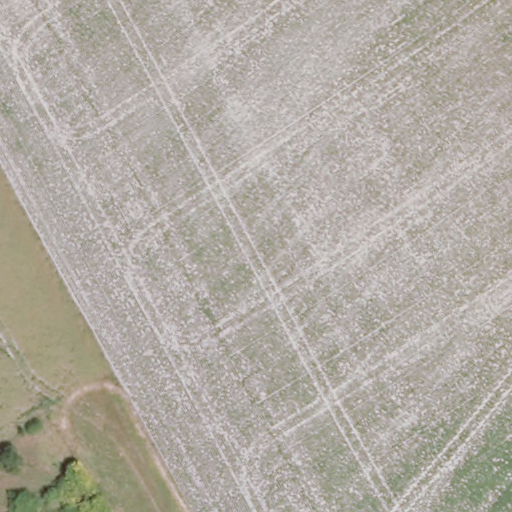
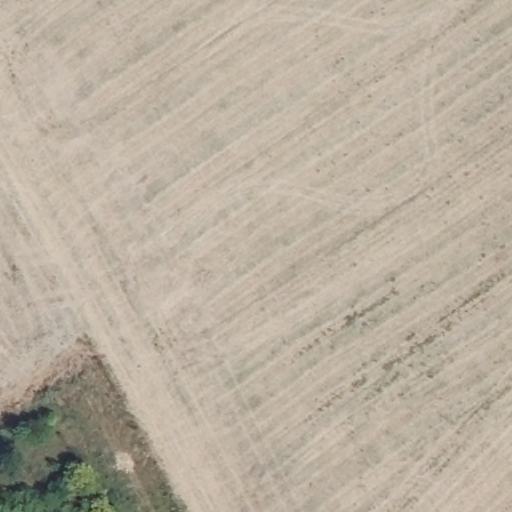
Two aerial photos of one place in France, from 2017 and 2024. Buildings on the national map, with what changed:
[]

